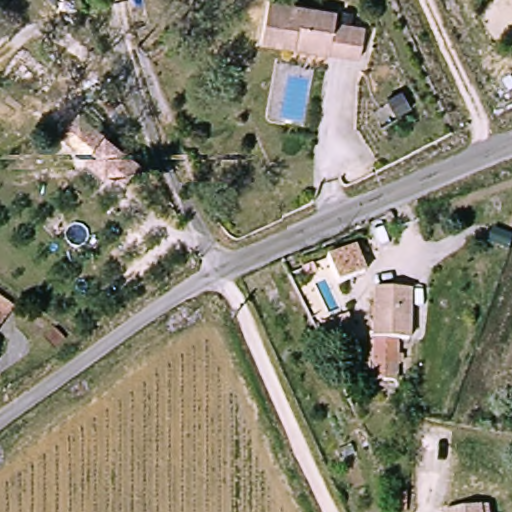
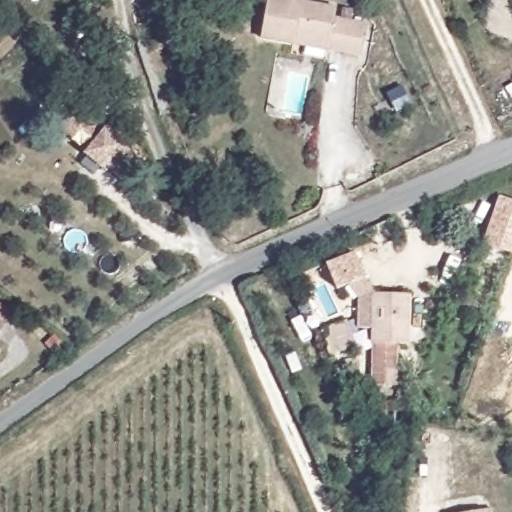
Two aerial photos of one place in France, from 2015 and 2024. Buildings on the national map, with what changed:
unchanged [(254,39),(261,0),(277,0),(326,9),(325,17),(361,25),(355,59),(318,51),(283,44),(254,39)]
unchanged [(105,163),(89,148),(96,141),(112,158),(123,171),(110,183),(98,170),(105,163)]
new [(512,253),(484,242),(500,196),(512,200),(512,253)]
unchanged [(358,262),(367,286),(340,298),(328,275),(358,262)]
unchanged [(378,399),(376,376),(382,370),(380,346),(377,346),(374,295),(403,293),(406,348),(396,349),(398,372),(390,372),(391,397),(378,399)]
unchanged [(8,325),(0,334),(0,319),(8,325)]
unchanged [(487,512),(450,512),(450,509),(486,504),(487,512)]

